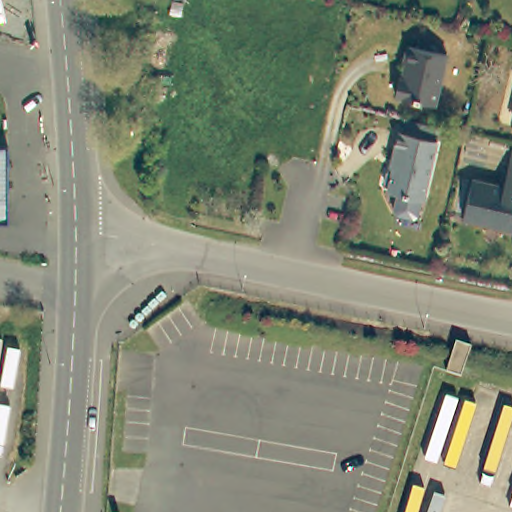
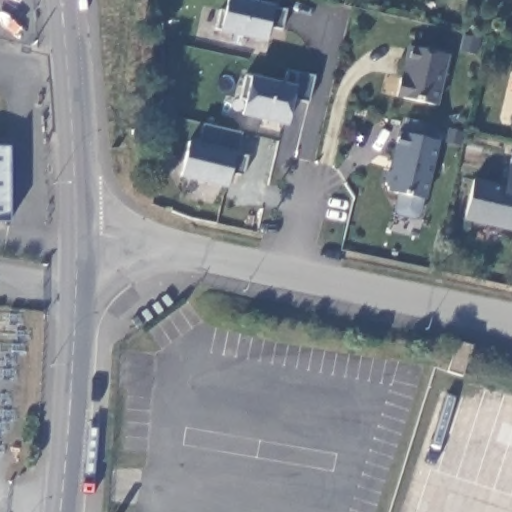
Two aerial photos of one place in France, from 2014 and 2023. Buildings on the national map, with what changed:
new [(287,10),(282,30),(269,27),(265,43),(217,33),(225,0),(277,0),(275,7),(287,10)]
unchanged [(451,53),(439,103),(399,94),(403,75),(406,75),(413,45),(451,53)]
new [(311,101),(293,100),(287,126),(239,117),(249,76),(283,83),(286,70),(315,77),(311,101)]
unchanged [(422,202),(421,202),(417,219),(412,222),(395,218),(392,213),(396,196),(386,194),(386,191),(383,187),(386,174),(386,175),(391,171),(395,152),(393,152),(397,135),(402,136),(405,121),(434,128),(431,143),(436,144),(422,202)]
new [(235,151),(248,155),(242,174),(230,170),(225,190),(180,179),(188,140),(198,143),(200,124),(240,133),(235,151)]
unchanged [(511,225),(461,214),(469,177),(498,183),(506,146),(512,148),(512,223),(511,225)]
unchanged [(11,224),(0,225),(0,151),(10,151),(11,224)]
unchanged [(472,355),(464,385),(448,381),(456,351),(472,355)]

